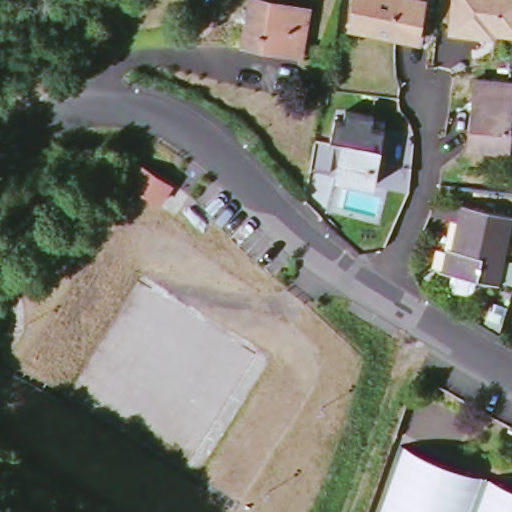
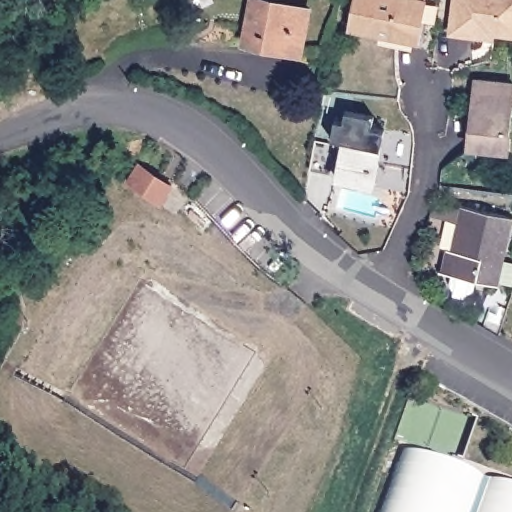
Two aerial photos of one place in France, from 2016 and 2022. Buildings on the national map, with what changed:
unchanged [(245,41),(252,0),(278,0),(309,4),(300,49),(245,41)]
unchanged [(350,25),(355,0),(422,0),(415,39),(350,25)]
unchanged [(450,29),(453,0),(512,0),(512,30),(485,28),(484,33),(450,29)]
unchanged [(468,144),(475,81),(512,84),(512,103),(507,148),(468,144)]
unchanged [(345,145),(334,143),(337,124),(347,126),(349,115),(377,121),(375,131),(387,134),(377,189),(339,182),(345,145)]
unchanged [(319,145),(339,148),(334,178),(314,174),(319,145)]
unchanged [(160,200),(124,178),(135,160),(172,182),(160,200)]
unchanged [(512,218),(512,225),(499,284),(450,274),(455,254),(460,255),(467,227),(462,225),(434,218),(440,204),(465,210),(466,208),(512,218)]
unchanged [(379,512),(404,445),(512,486),(512,512),(379,512)]

